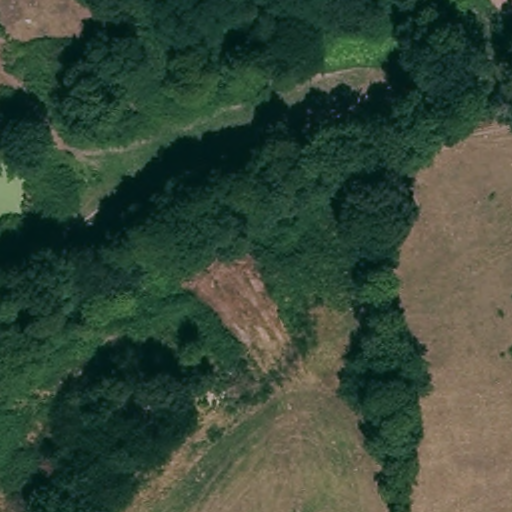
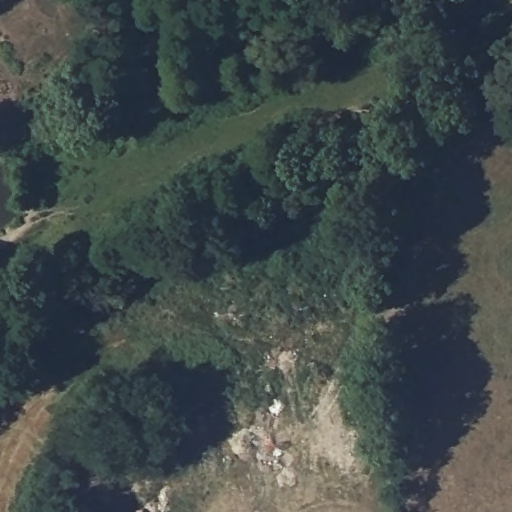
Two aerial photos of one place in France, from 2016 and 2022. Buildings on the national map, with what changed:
[]

